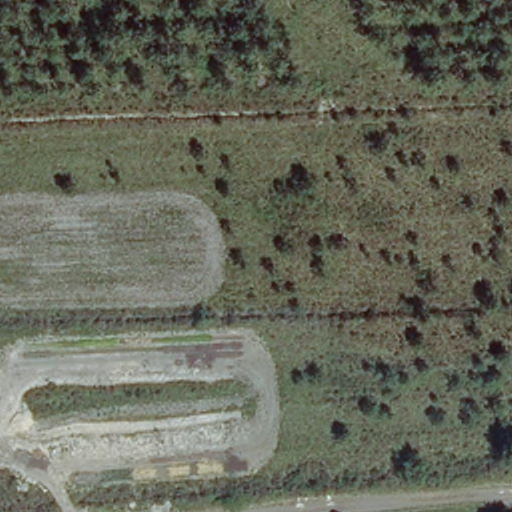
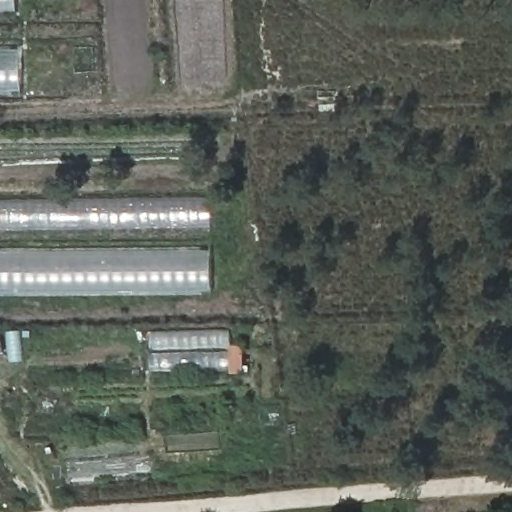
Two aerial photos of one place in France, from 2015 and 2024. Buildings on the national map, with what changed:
new [(0,0),(16,0),(16,10),(0,10),(0,0)]
new [(0,51),(21,50),(22,91),(0,91),(0,51)]
new [(0,201),(212,199),(212,225),(0,227),(0,201)]
new [(0,251),(212,250),(212,292),(0,295),(0,251)]
new [(4,353),(0,354),(0,332),(1,332),(4,353)]

